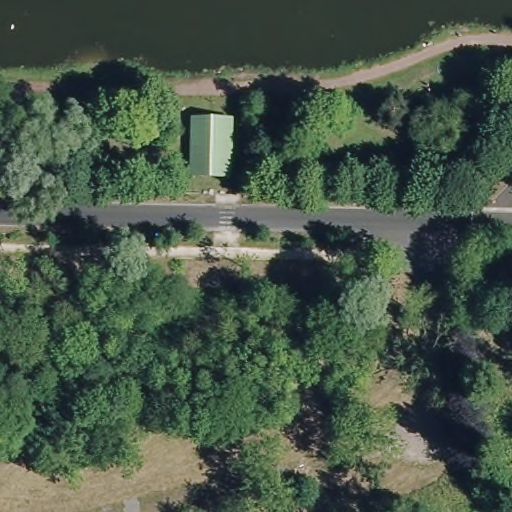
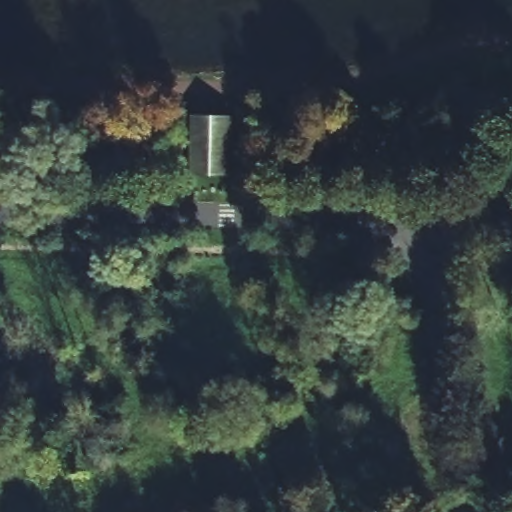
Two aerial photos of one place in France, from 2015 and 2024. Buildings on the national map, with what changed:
unchanged [(207,118),(229,118),(227,179),(207,179),(193,179),(195,117),(207,118)]

